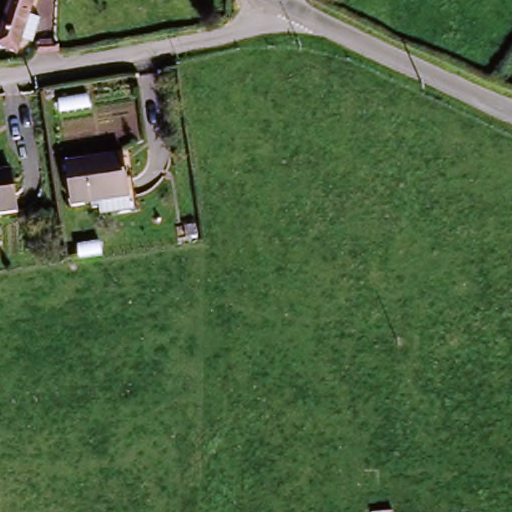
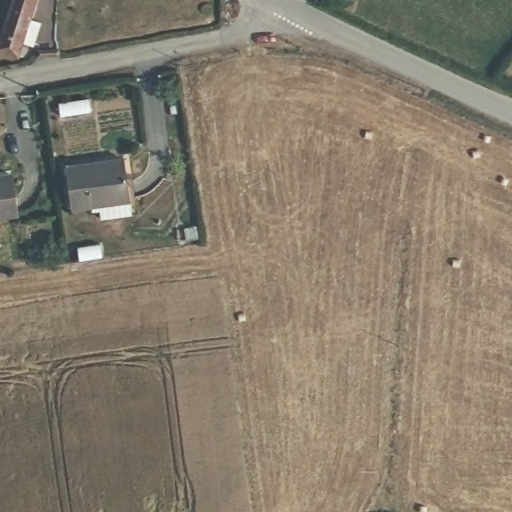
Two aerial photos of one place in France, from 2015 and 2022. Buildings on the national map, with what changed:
unchanged [(31,26),(41,30),(35,54),(23,50),(18,65),(0,56),(0,36),(5,38),(18,0),(40,0),(31,26)]
unchanged [(137,220),(105,222),(103,210),(74,213),(69,170),(125,164),(131,207),(136,207),(137,220)]
unchanged [(11,178),(18,220),(0,222),(0,180),(11,178)]

